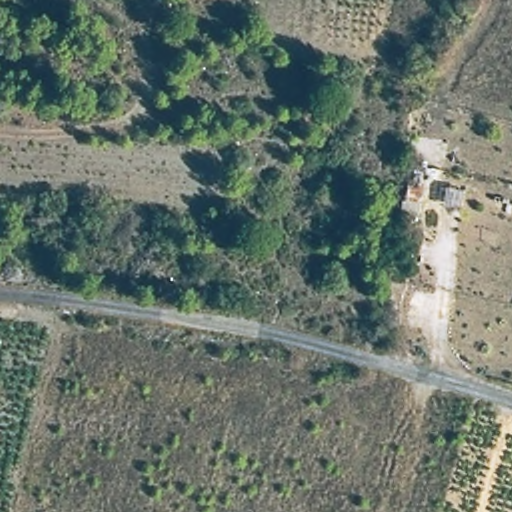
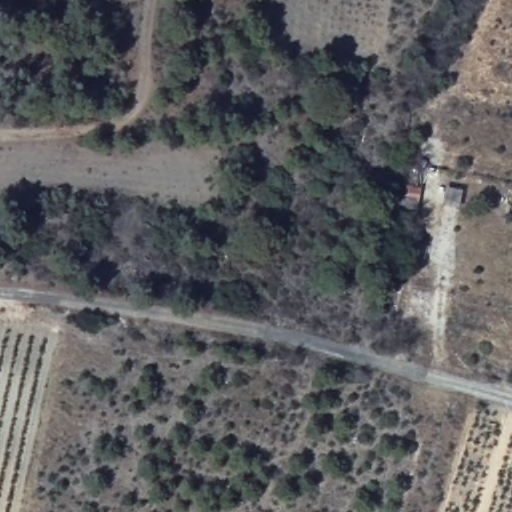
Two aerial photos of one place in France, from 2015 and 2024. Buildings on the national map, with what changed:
unchanged [(402,178),(416,180),(415,199),(402,193),(402,178)]

